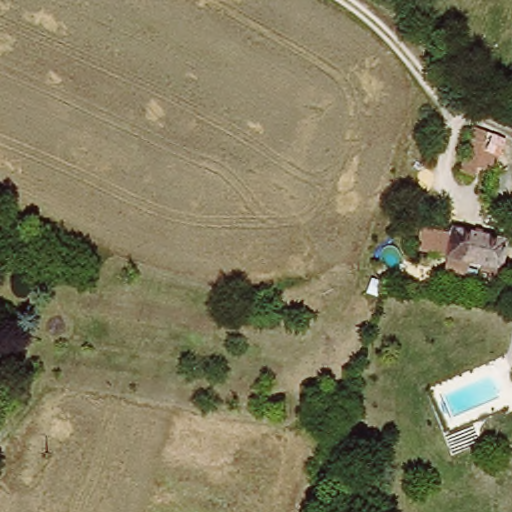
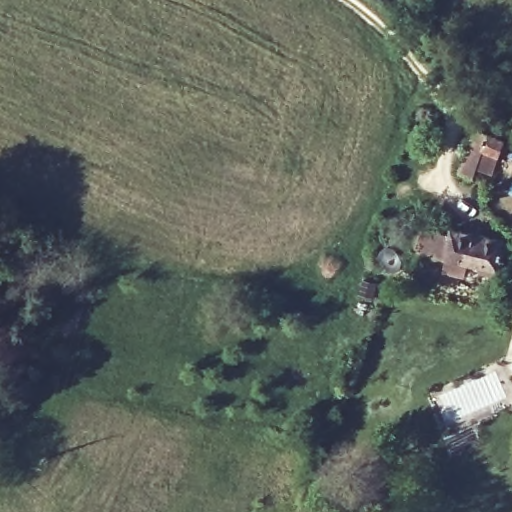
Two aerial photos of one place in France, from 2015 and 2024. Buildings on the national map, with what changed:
unchanged [(463,175),(470,150),(476,131),(506,141),(510,142),(509,147),(504,161),(502,160),(484,155),(477,180),(463,175)]
unchanged [(458,234),(506,250),(500,270),(436,254),(440,236),(456,240),(458,234)]

